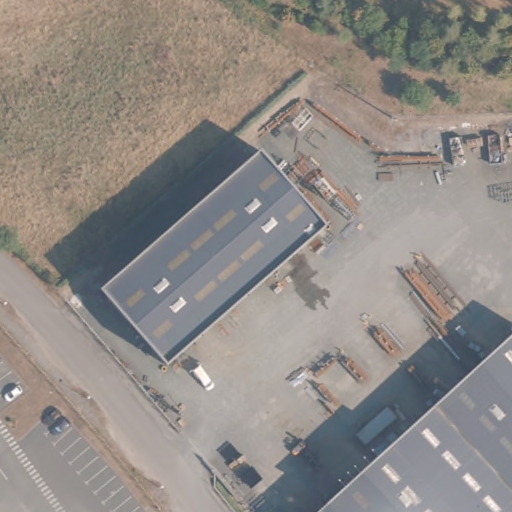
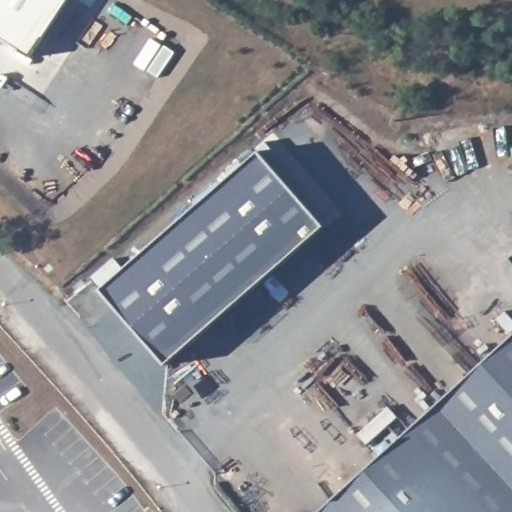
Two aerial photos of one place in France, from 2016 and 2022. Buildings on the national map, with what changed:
new [(29,57),(0,38),(0,0),(67,0),(29,57)]
unchanged [(260,151),(326,226),(166,366),(101,291),(260,151)]
unchanged [(309,512),(512,326),(512,512),(309,512)]

